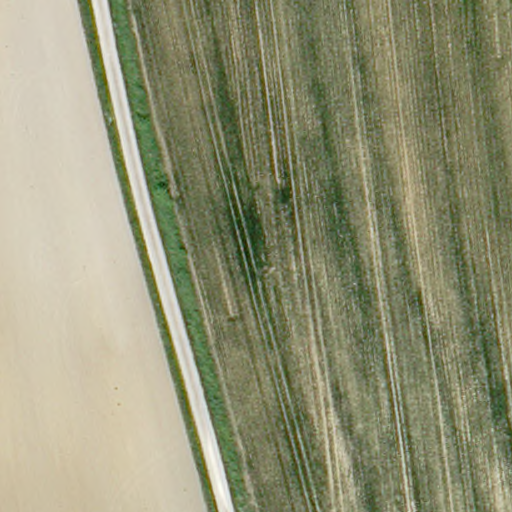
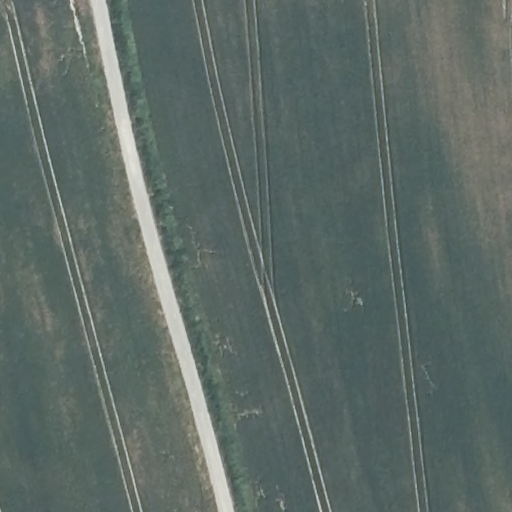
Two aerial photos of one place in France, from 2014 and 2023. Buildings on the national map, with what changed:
[]

